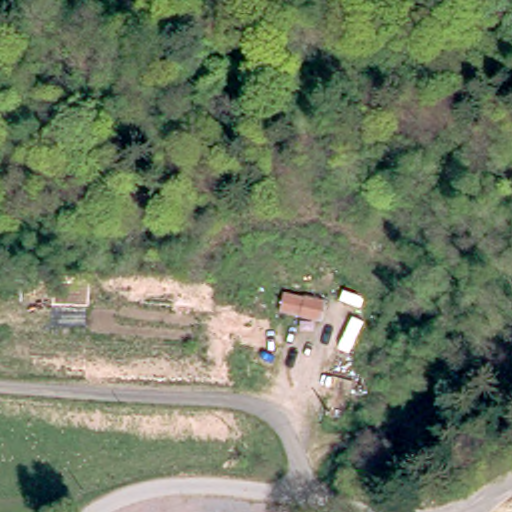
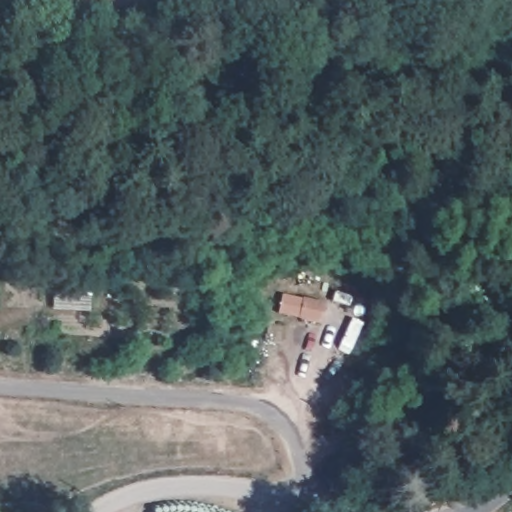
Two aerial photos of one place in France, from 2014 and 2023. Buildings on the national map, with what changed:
unchanged [(294,301),(315,306),(315,305),(334,310),(329,329),(290,319),(294,301)]

